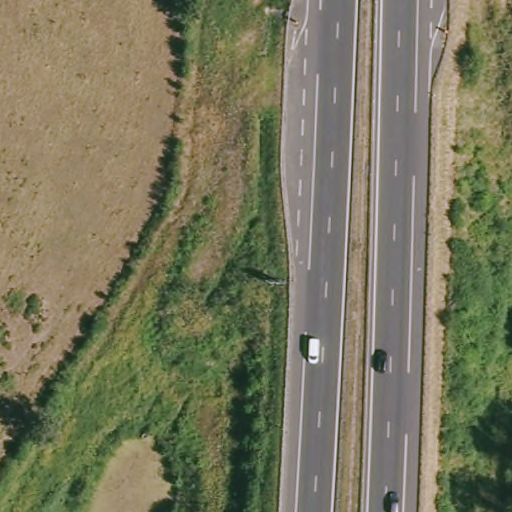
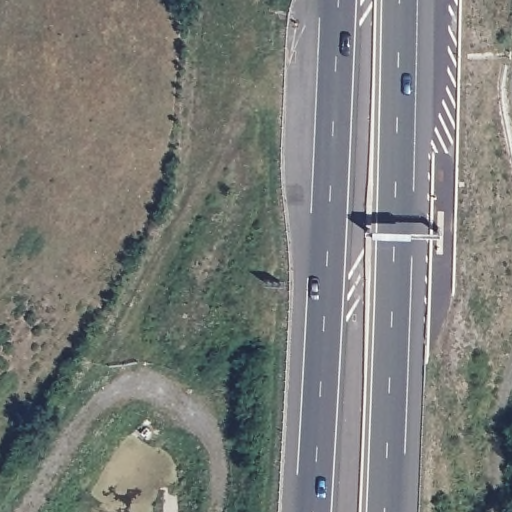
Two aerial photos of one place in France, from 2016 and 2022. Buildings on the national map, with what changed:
unchanged [(261,282),(262,270),(282,270),(282,282),(261,282)]

